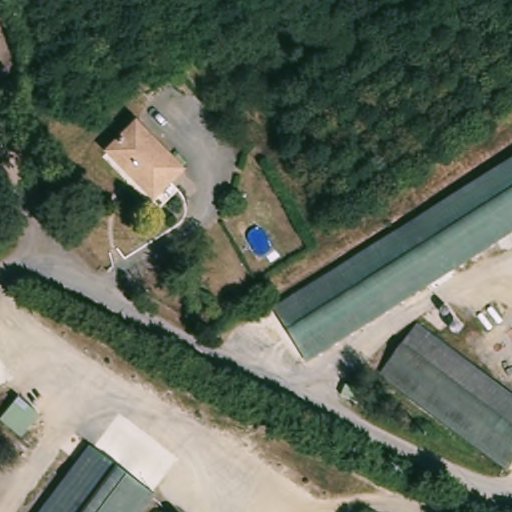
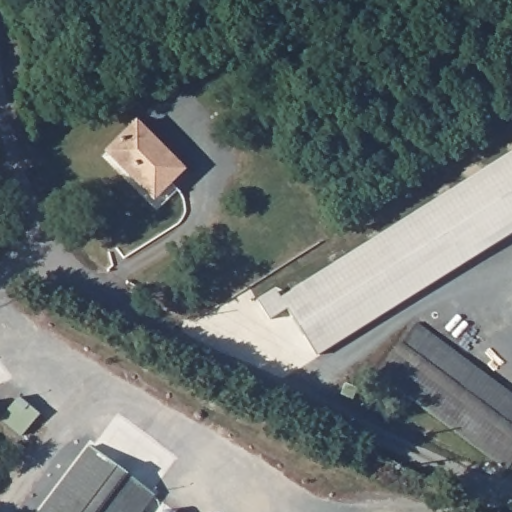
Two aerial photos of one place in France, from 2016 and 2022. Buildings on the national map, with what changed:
unchanged [(133,122),(180,166),(166,180),(152,193),(107,150),(133,122)]
unchanged [(281,316),(512,160),(512,230),(314,363),(281,316)]
unchanged [(512,404),(512,453),(502,466),(377,376),(413,330),(512,404)]
unchanged [(37,412),(20,437),(0,424),(0,416),(16,398),(37,412)]
unchanged [(136,512),(39,512),(88,449),(149,495),(136,512)]

